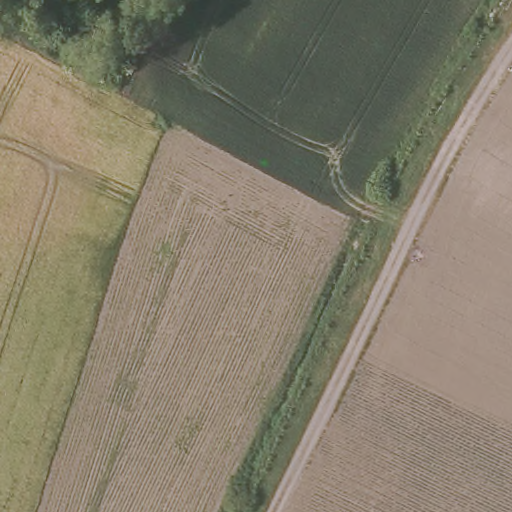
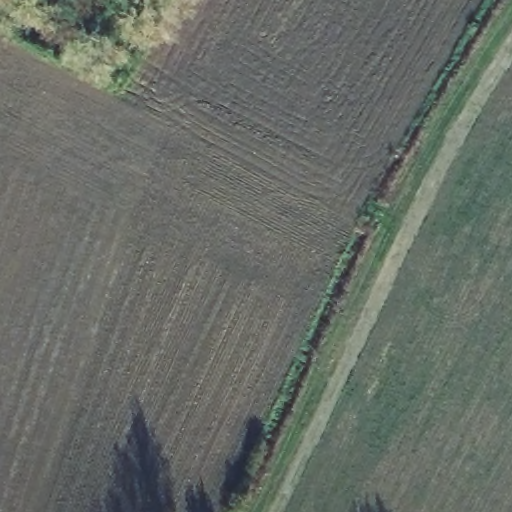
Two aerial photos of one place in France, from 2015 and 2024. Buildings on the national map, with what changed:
[]

